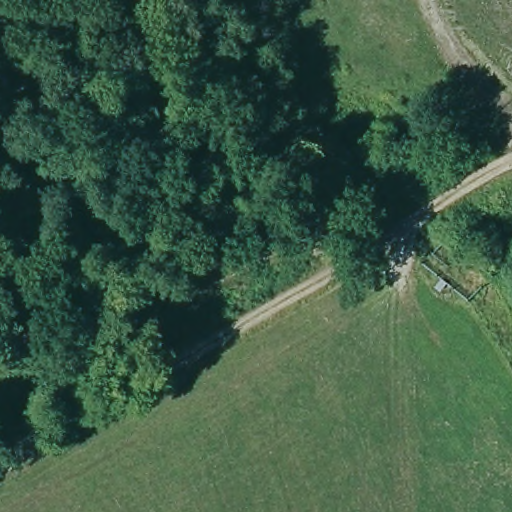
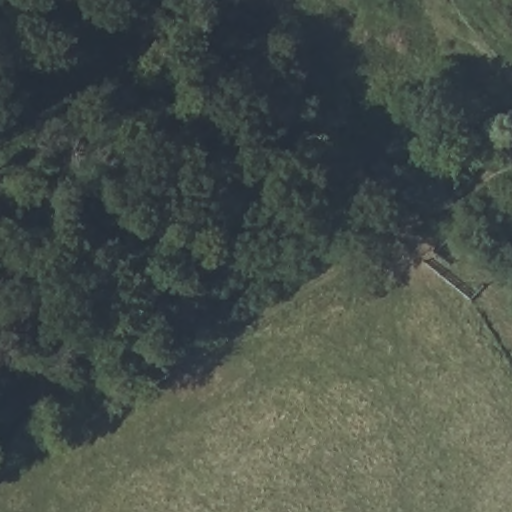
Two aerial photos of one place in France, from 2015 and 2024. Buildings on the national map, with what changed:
unchanged [(424,41),(460,90),(437,101),(405,51),(424,41)]

